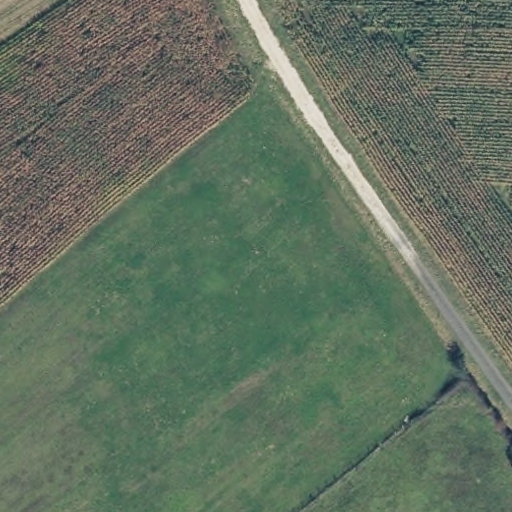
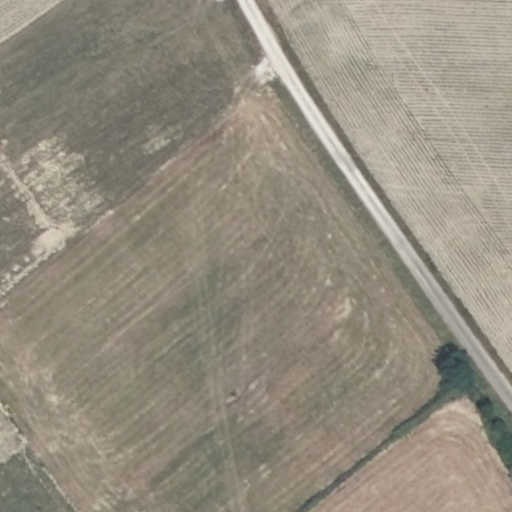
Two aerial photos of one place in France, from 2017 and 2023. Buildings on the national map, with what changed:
[]

